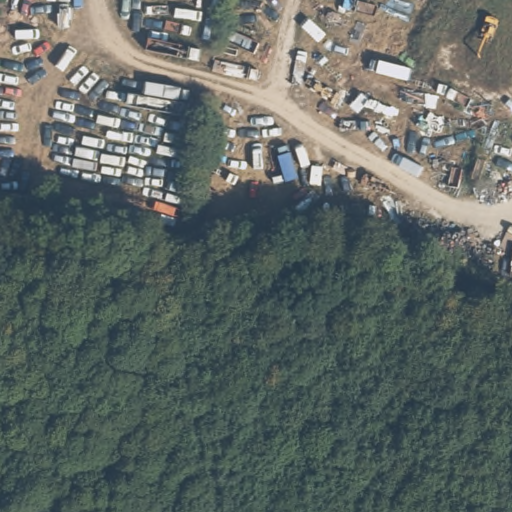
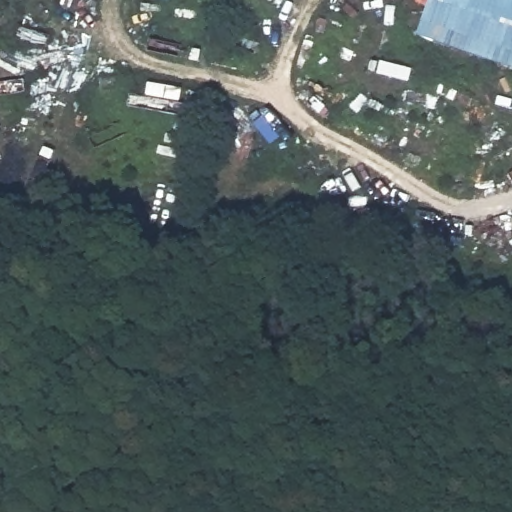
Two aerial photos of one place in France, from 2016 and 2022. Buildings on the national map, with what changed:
new [(427,0),(512,0),(512,67),(414,34),(427,0)]

